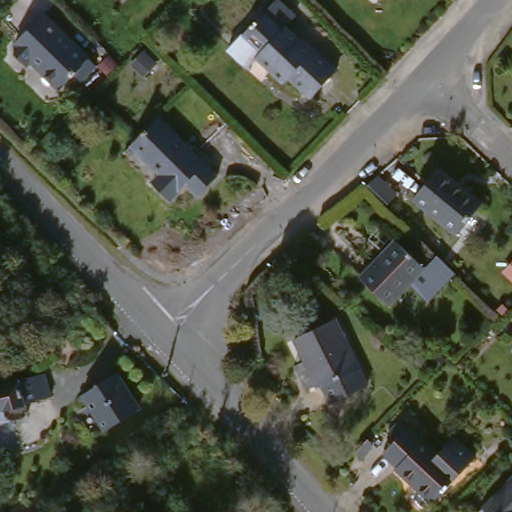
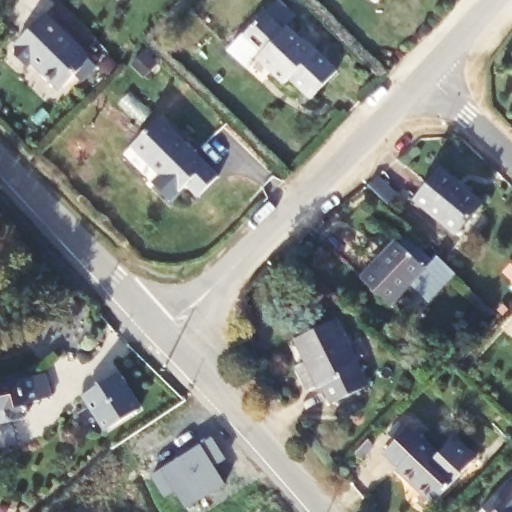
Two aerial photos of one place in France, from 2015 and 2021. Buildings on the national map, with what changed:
unchanged [(359,7),(352,0),(366,0),(359,7)]
unchanged [(96,60),(81,75),(74,68),(59,82),(31,52),(25,57),(14,45),(14,38),(17,36),(15,35),(46,7),(96,60)]
unchanged [(304,46),(336,81),(311,107),(289,86),(283,92),(259,67),(246,78),(229,61),(248,43),(255,35),(268,22),(269,23),(284,8),(301,26),(290,37),(301,49),(304,46)]
unchanged [(162,120),(219,180),(199,200),(187,188),(170,203),(153,185),(163,176),(156,169),(154,171),(132,148),(162,120)]
unchanged [(410,199),(436,172),(474,212),(448,237),(410,199)]
unchanged [(373,179),(391,197),(382,206),(362,186),(373,179)]
unchanged [(363,281),(396,250),(420,276),(409,287),(388,308),(363,281)]
unchanged [(420,276),(424,272),(419,267),(433,250),(458,273),(428,307),(409,287),(420,276)]
unchanged [(330,408),(324,395),(313,400),(290,349),(335,325),(365,389),(330,408)]
unchanged [(123,371),(143,413),(102,431),(81,390),(123,371)]
unchanged [(23,386),(30,410),(6,416),(9,428),(0,431),(0,392),(23,386)]
unchanged [(471,467),(429,512),(394,477),(399,473),(386,459),(416,432),(441,457),(453,445),(471,467)]
new [(212,435),(225,456),(213,463),(224,482),(186,505),(174,488),(164,494),(151,473),(212,435)]
unchanged [(512,512),(487,512),(512,487),(512,512)]

